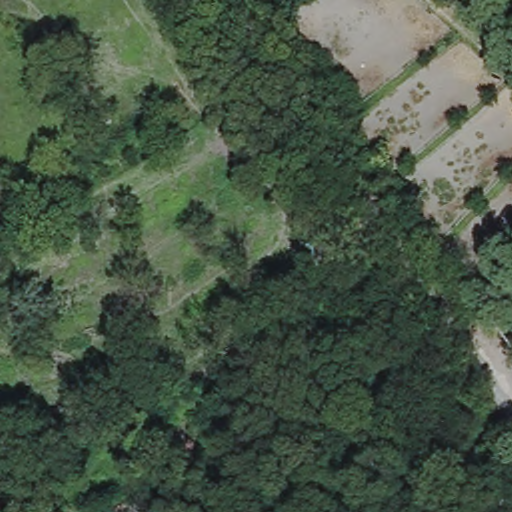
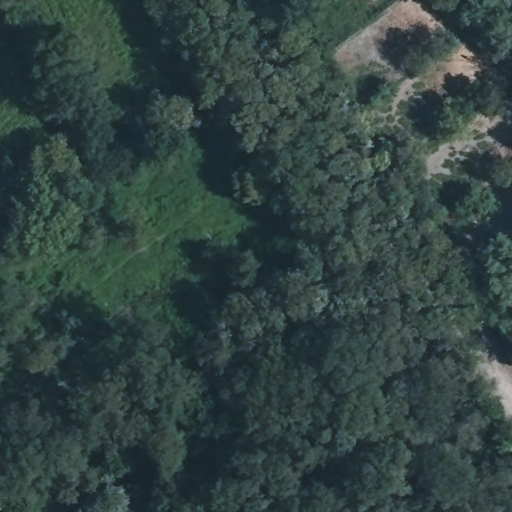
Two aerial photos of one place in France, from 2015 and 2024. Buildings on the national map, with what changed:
unchanged [(380,269),(361,277),(342,257),(365,246),(380,269)]

